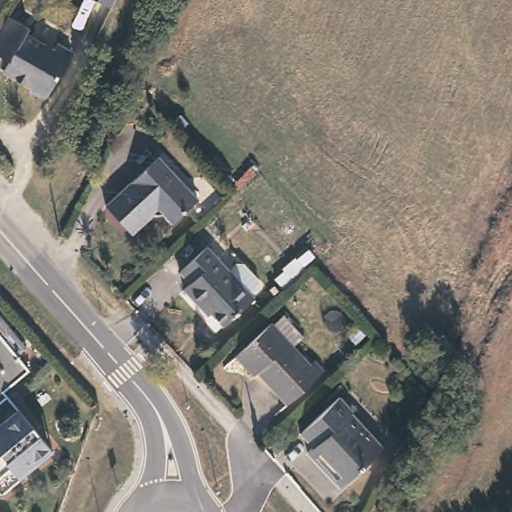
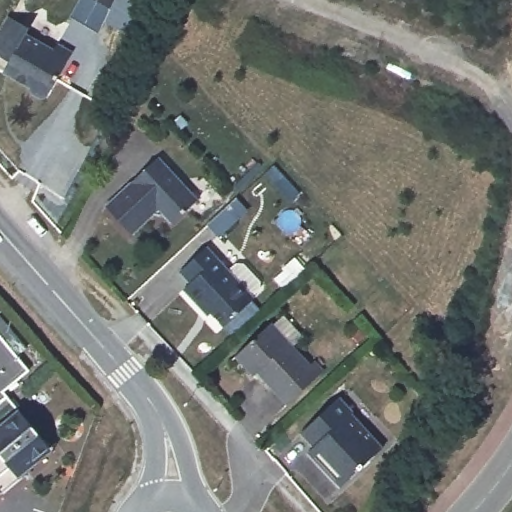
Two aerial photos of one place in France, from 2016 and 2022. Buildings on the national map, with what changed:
unchanged [(88,0),(110,0),(105,11),(88,0)]
unchanged [(29,35),(44,46),(56,55),(60,50),(74,60),(45,100),(38,102),(28,96),(26,89),(10,76),(7,64),(9,61),(0,55),(0,35),(14,16),(19,20),(32,30),(29,35)]
unchanged [(162,157),(200,198),(176,221),(164,209),(136,235),(110,206),(162,157)]
unchanged [(201,316),(197,312),(180,294),(187,288),(176,276),(202,251),(222,271),(230,265),(236,265),(253,282),(253,290),(246,296),(251,301),(220,331),(208,317),(204,320),(201,316)]
unchanged [(276,318),(297,340),(287,350),(304,367),(308,363),(318,372),(310,380),(283,405),(252,374),(249,377),(230,358),(263,326),(266,328),(276,318)]
unchanged [(28,368),(0,393),(0,337),(28,368)]
unchanged [(45,445),(49,450),(42,456),(0,492),(0,394),(45,445)]
unchanged [(306,452),(311,447),(297,431),(335,394),(348,407),(346,409),(380,445),(345,480),(338,486),(306,452)]

